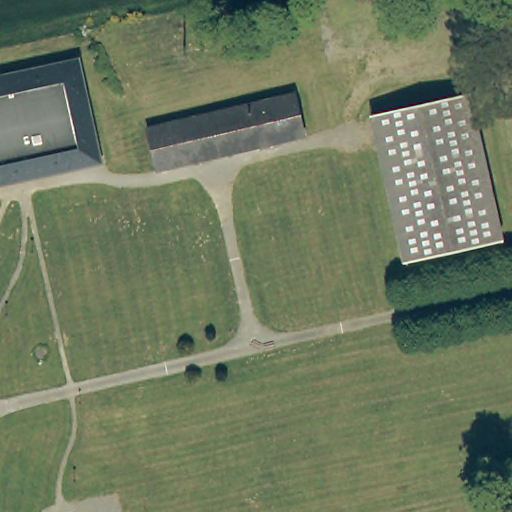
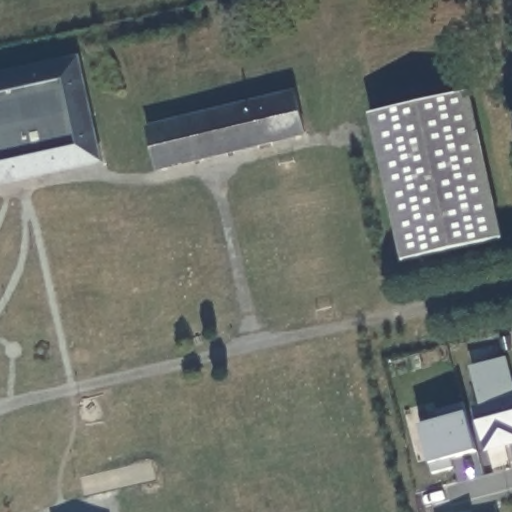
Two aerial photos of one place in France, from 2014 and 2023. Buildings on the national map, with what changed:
unchanged [(100,162),(57,171),(54,158),(0,170),(0,77),(77,60),(100,162)]
unchanged [(406,263),(373,112),(470,90),(505,241),(406,263)]
unchanged [(148,129),(297,94),(306,133),(156,168),(148,129)]
unchanged [(57,171),(0,184),(0,170),(54,158),(57,171)]
new [(485,453),(473,407),(479,406),(469,367),(506,357),(512,381),(512,446),(485,453)]
new [(439,420),(437,411),(464,403),(477,451),(450,459),(453,468),(433,474),(420,425),(439,420)]

